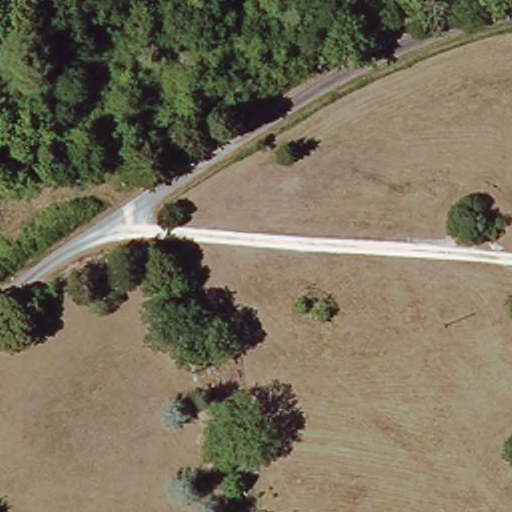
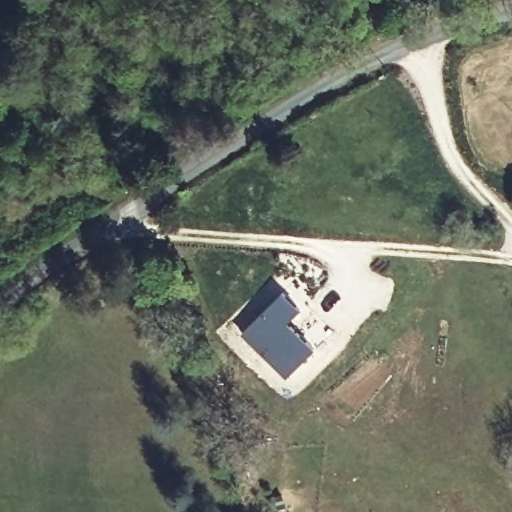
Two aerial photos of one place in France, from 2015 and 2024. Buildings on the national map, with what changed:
new [(240,333),(284,291),(300,308),(287,321),(314,348),(286,376),(240,333)]

